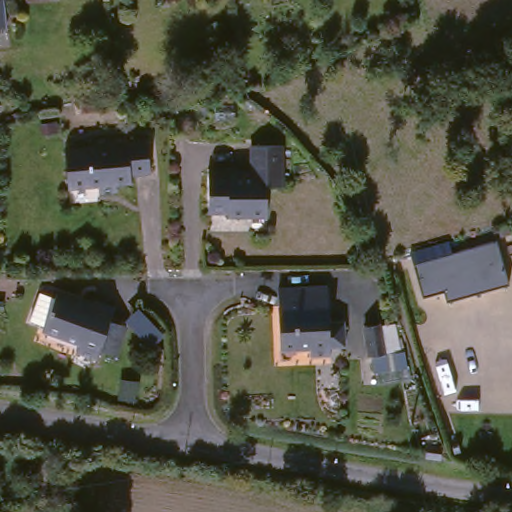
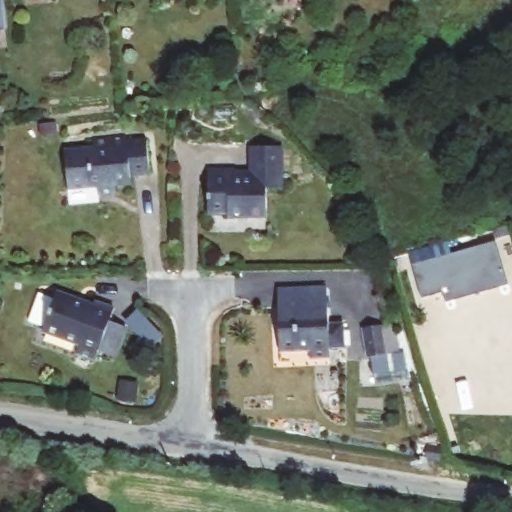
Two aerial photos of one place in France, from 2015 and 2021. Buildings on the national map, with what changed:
unchanged [(46,5),(38,5),(33,0),(49,0),(46,5)]
unchanged [(145,183),(128,185),(129,194),(114,195),(114,200),(108,205),(93,206),(93,197),(67,199),(64,159),(90,156),(90,146),(125,144),(125,148),(142,147),(145,183)]
unchanged [(235,222),(235,219),(208,219),(208,180),(237,180),(237,185),(253,184),(253,174),(283,174),(284,190),(268,190),(269,221),(235,222)]
unchanged [(418,292),(409,262),(494,240),(505,285),(474,292),(443,300),(440,292),(439,290),(433,292),(418,296),(418,292)]
unchanged [(275,295),(325,294),(326,335),(343,335),(343,358),(326,358),(326,365),(305,366),(305,357),(277,358),(275,310),(275,295)]
unchanged [(111,370),(94,363),(91,371),(72,361),(75,354),(39,337),(41,334),(28,327),(40,301),(54,307),(56,302),(90,318),(94,311),(113,321),(107,334),(123,341),(111,370)]
unchanged [(359,323),(376,320),(377,323),(388,321),(394,348),(384,350),(385,353),(366,356),(359,323)]

